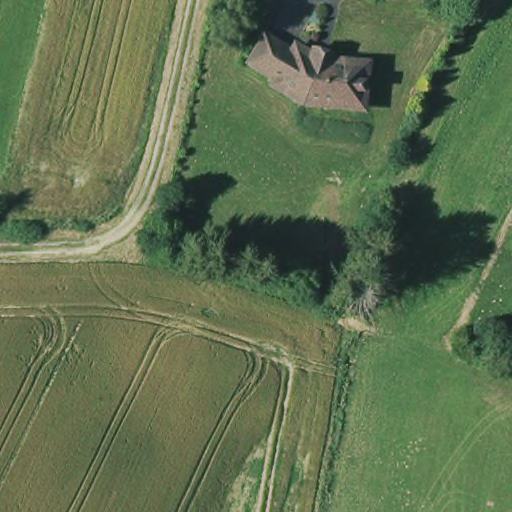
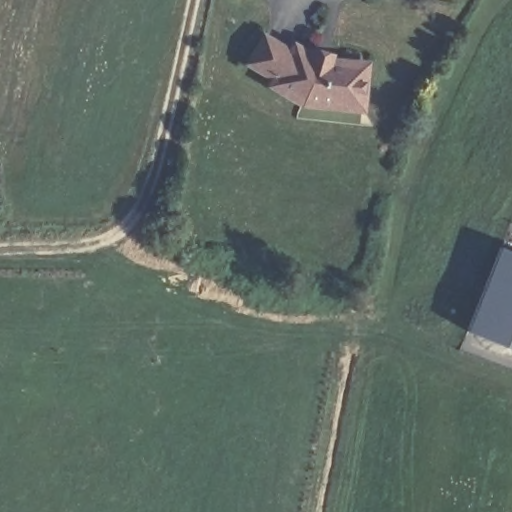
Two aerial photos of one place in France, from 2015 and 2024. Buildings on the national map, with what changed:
unchanged [(319,62),(324,56),(337,59),(336,65),(373,69),(368,112),(306,111),(279,90),(283,85),(258,66),(275,42),(301,61),(306,53),(319,62)]
new [(501,246),(512,251),(512,350),(466,330),(467,326),(501,246)]

